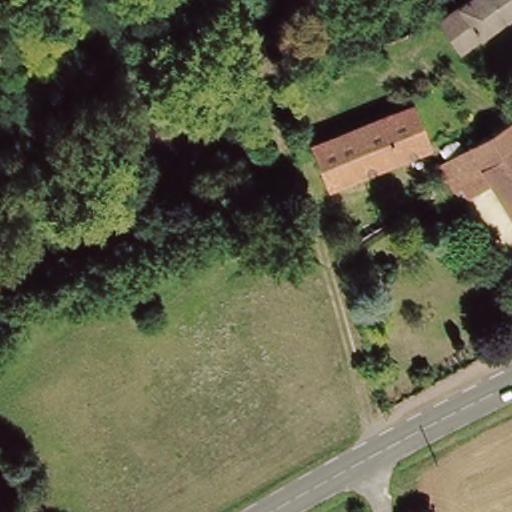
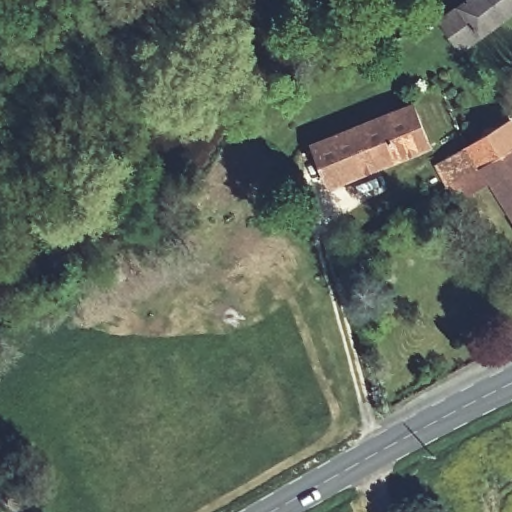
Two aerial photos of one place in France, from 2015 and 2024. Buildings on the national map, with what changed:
unchanged [(456,50),(438,23),(470,0),(512,0),(512,13),(486,31),(456,50)]
unchanged [(332,191),(315,147),(415,104),(432,147),(332,191)]
unchanged [(467,191),(457,178),(438,191),(394,217),(386,203),(432,176),(430,166),(466,147),(502,125),(512,140),(512,211),(489,178),(467,191)]

